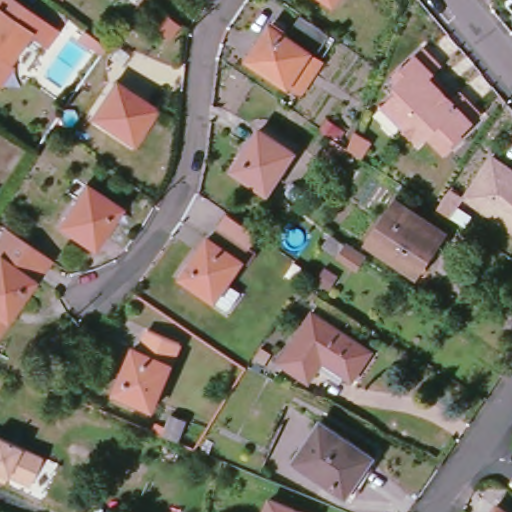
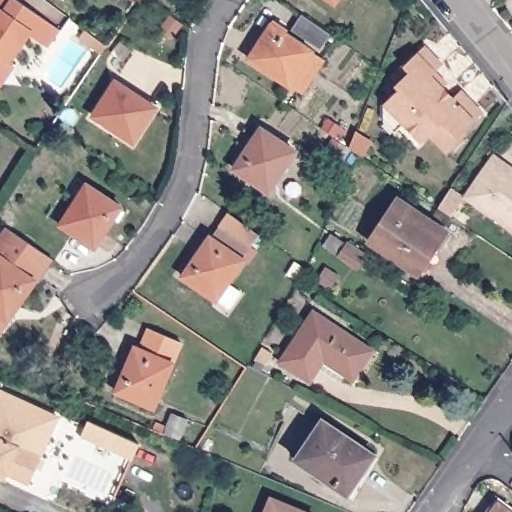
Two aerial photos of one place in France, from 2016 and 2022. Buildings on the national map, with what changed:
unchanged [(2,8),(0,6),(0,1),(1,0),(23,0),(63,28),(51,45),(33,32),(13,61),(17,64),(4,84),(0,82),(0,11),(2,8)]
unchanged [(330,0),(336,0),(334,3),(330,0)]
unchanged [(318,49),(290,29),(301,14),(330,34),(318,49)]
unchanged [(287,86),(248,59),(272,21),(285,30),(283,33),(310,50),(324,59),(300,94),(287,86)]
unchanged [(383,109),(391,100),(398,93),(393,89),(394,78),(423,49),(442,68),(431,78),(454,101),(462,94),(482,115),(464,134),(467,138),(451,154),(432,136),(423,144),(405,127),(395,138),(381,126),(383,109)]
unchanged [(133,141),(93,115),(115,81),(156,107),(133,141)]
unchanged [(268,192),(233,169),(260,128),(295,151),(268,192)]
unchanged [(496,155),(512,166),(512,225),(469,196),(496,155)]
unchanged [(95,248),(60,225),(86,184),(121,208),(95,248)]
unchanged [(449,215),(437,207),(447,192),(460,200),(449,215)]
unchanged [(415,272),(368,242),(395,199),(442,230),(415,272)]
unchanged [(209,237),(213,239),(221,227),(230,214),(256,233),(248,244),(240,257),(243,259),(228,283),(239,291),(227,308),(181,276),(209,237)]
unchanged [(52,259),(0,339),(0,236),(5,229),(52,259)]
unchanged [(356,267),(340,255),(347,245),(364,257),(356,267)]
unchanged [(356,379),(350,374),(344,381),(322,367),(313,381),(285,361),(317,312),(375,351),(356,379)]
unchanged [(153,408),(115,391),(133,346),(139,349),(147,329),(181,343),(172,363),(153,408)]
new [(43,456),(0,436),(0,390),(59,417),(43,456)]
unchanged [(178,439),(163,433),(171,413),(186,418),(178,439)]
unchanged [(346,495),(295,459),(321,418),(375,454),(346,495)]
unchanged [(0,480),(0,436),(43,456),(30,486),(8,476),(5,482),(0,480)]
unchanged [(270,498),(304,512),(264,512),(270,498)]
unchanged [(497,504),(509,512),(491,512),(497,504)]

